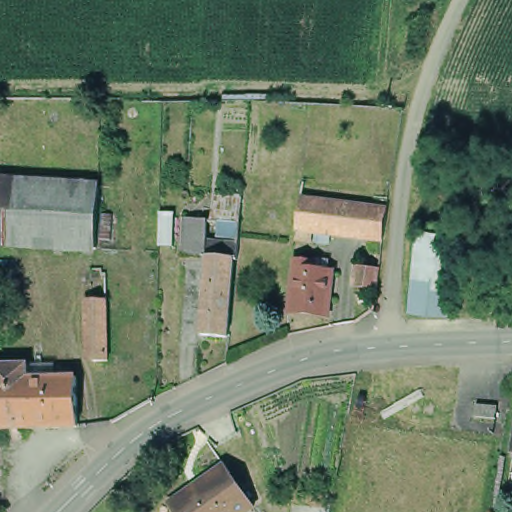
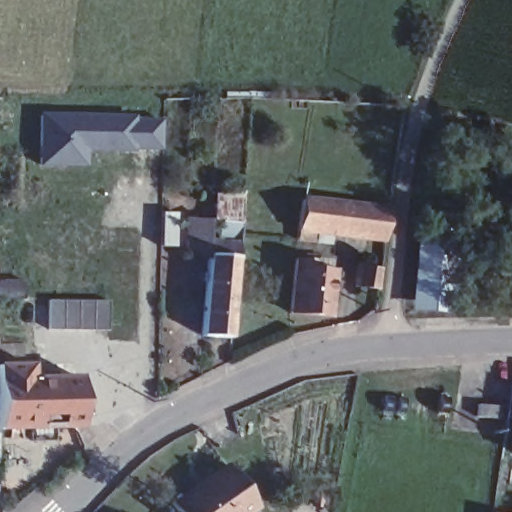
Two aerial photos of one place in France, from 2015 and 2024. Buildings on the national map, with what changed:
new [(132,117),(132,123),(160,122),(160,147),(101,150),(101,142),(84,141),(82,165),(41,165),(41,117),(132,117)]
demolished [(80,186),(95,187),(91,248),(0,242),(0,180),(30,182),(80,186)]
unchanged [(292,235),(294,224),(297,194),(350,201),(360,202),(382,205),(378,234),(347,230),(311,226),(309,236),(292,235)]
unchanged [(176,217),(175,247),(160,247),(160,231),(160,217),(176,217)]
unchanged [(417,307),(422,231),(425,232),(457,234),(452,309),(422,307),(417,307)]
unchanged [(197,374),(201,331),(204,297),(181,295),(180,295),(181,257),(182,258),(207,260),(211,234),(238,237),(237,245),(236,263),(237,263),(234,300),(232,300),(229,322),(224,376),(197,374)]
unchanged [(311,260),(310,269),(329,270),(325,317),(285,314),(290,259),(311,260)]
unchanged [(380,268),(377,288),(355,285),(357,265),(380,268)]
unchanged [(22,296),(26,296),(26,298),(0,299),(0,278),(22,278),(22,296)]
demolished [(89,340),(88,310),(88,301),(102,301),(102,307),(102,310),(103,340),(103,343),(104,362),(89,362),(89,340)]
new [(110,306),(110,330),(51,327),(49,303),(110,306)]
unchanged [(51,387),(82,386),(82,437),(1,437),(1,417),(1,412),(0,412),(0,375),(34,374),(51,373),(51,387)]
unchanged [(498,406),(496,418),(475,414),(477,402),(498,406)]
unchanged [(0,441),(1,441),(1,450),(1,488),(0,488),(0,441)]
unchanged [(225,459),(255,502),(240,512),(180,512),(170,497),(196,479),(225,459)]
unchanged [(170,497),(180,512),(166,512),(161,504),(170,497)]

